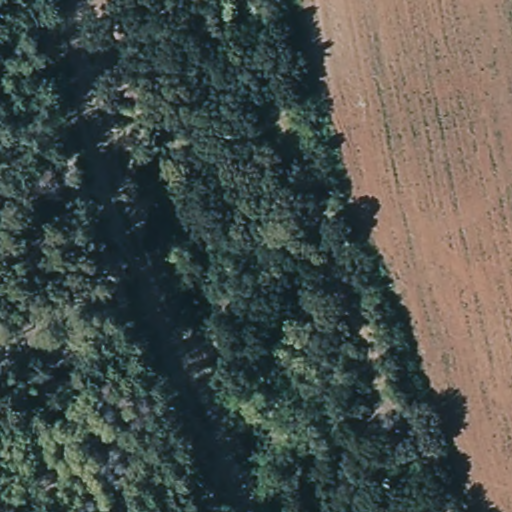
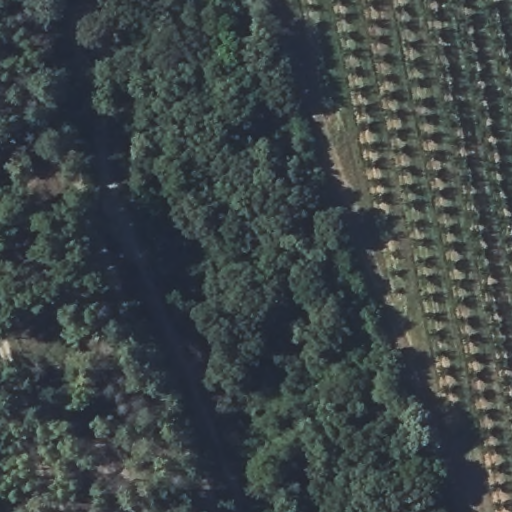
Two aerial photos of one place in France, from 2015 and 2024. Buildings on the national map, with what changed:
[]

